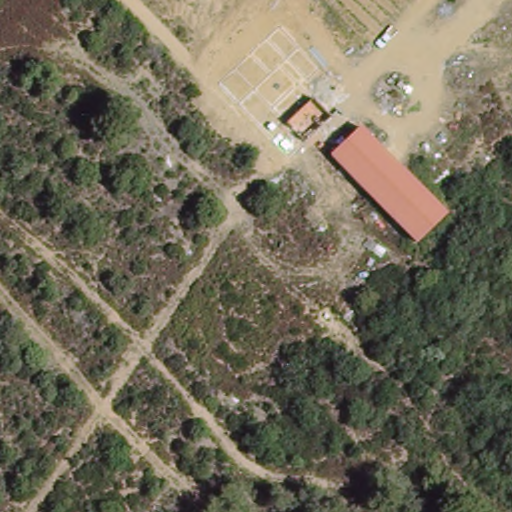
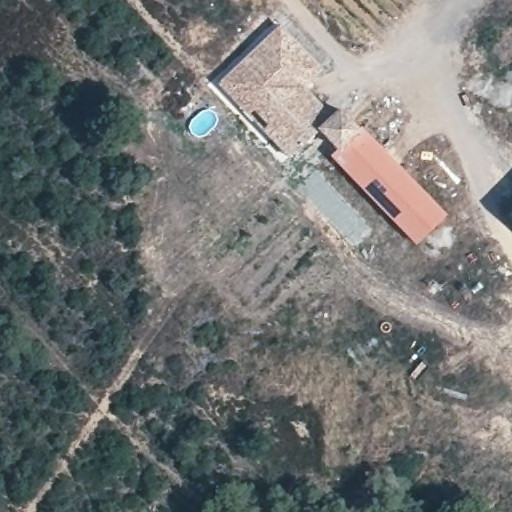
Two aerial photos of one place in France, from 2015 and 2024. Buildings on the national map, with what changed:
new [(323,69),(305,87),(330,114),(338,105),(358,125),(335,145),(320,129),(290,157),(218,82),(280,23),(323,69)]
unchanged [(413,240),(328,152),(358,125),(441,214),(413,240)]
new [(512,210),(512,217),(508,214),(512,210)]

